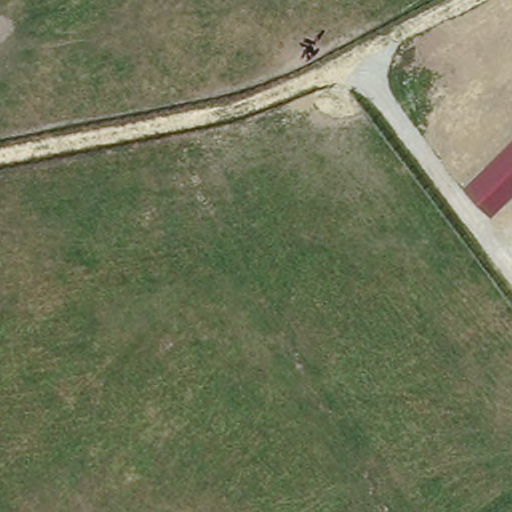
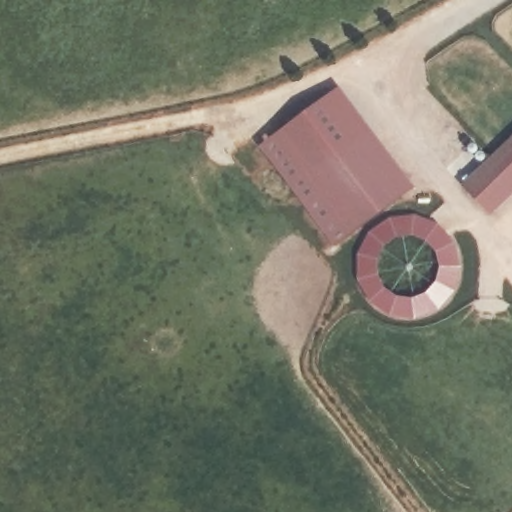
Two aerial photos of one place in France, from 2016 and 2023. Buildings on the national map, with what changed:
new [(338,88),(412,187),(333,245),(260,145),(338,88)]
new [(512,132),(512,194),(490,215),(461,181),(512,132)]
new [(464,279),(461,290),(456,299),(449,307),(440,315),(431,320),(420,322),(410,323),(399,322),(389,320),(379,315),(371,307),(364,299),(359,290),(356,279),(355,268),(356,258),(359,247),(364,238),(371,230),(379,222),(389,217),(399,215),(410,214),(420,215),(431,217),(440,222),(449,230),(456,238),(461,247),(464,258),(465,268),(464,279)]

